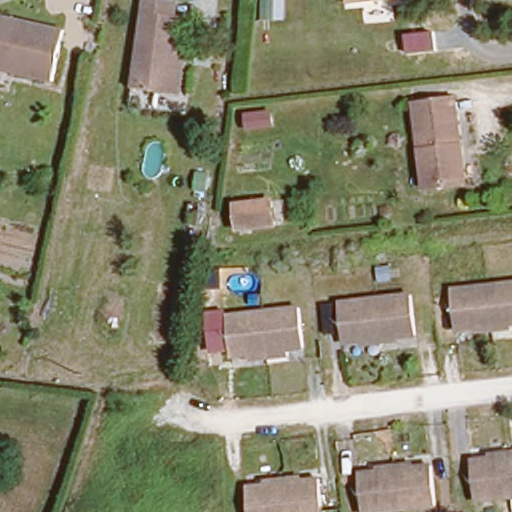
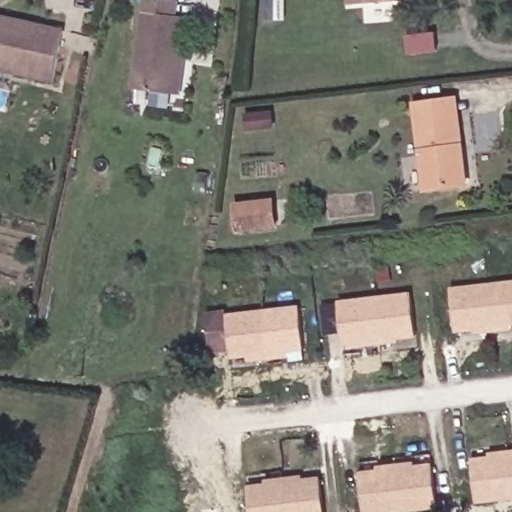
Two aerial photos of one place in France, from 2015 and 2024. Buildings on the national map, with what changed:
unchanged [(147,0),(175,0),(176,12),(185,12),(177,88),(139,85),(147,0)]
unchanged [(347,0),(398,0),(399,6),(348,9),(347,0)]
unchanged [(65,25),(54,77),(32,73),(0,66),(0,12),(65,25)]
unchanged [(411,106),(443,101),(446,120),(456,119),(462,149),(451,151),(457,189),(424,195),(411,106)]
unchanged [(274,202),(277,227),(243,230),(241,206),(274,202)]
unchanged [(452,331),(448,285),(490,282),(512,280),(512,325),(495,327),(452,331)]
unchanged [(376,294),(410,290),(415,337),(380,340),(342,344),(337,298),(376,294)]
unchanged [(229,315),(266,311),(299,308),(304,355),(271,359),(235,362),(229,315)]
unchanged [(512,496),(475,499),(471,455),(512,452),(512,496)]
unchanged [(399,512),(364,512),(361,470),(400,467),(431,464),(435,509),(405,512),(399,512)]
unchanged [(314,475),(318,512),(250,512),(247,481),(286,478),(314,475)]

